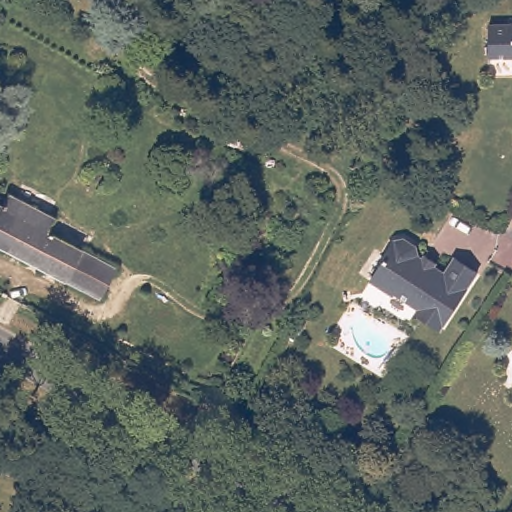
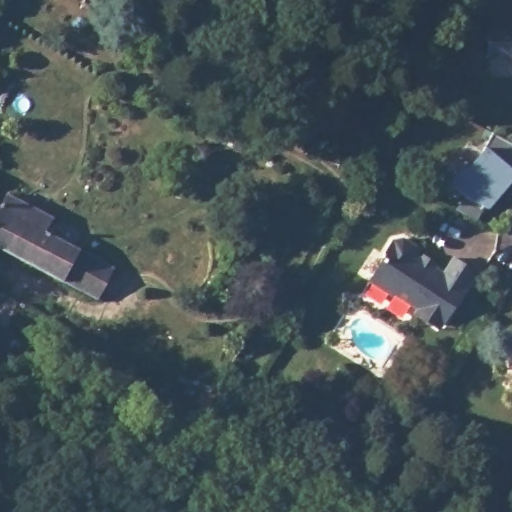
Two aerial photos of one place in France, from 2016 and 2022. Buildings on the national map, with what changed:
unchanged [(488,23),(512,23),(512,56),(488,56),(488,23)]
unchanged [(177,114),(205,129),(200,140),(172,125),(177,114)]
new [(471,199),(454,187),(466,170),(471,172),(484,153),(494,134),(512,144),(512,183),(492,212),(489,210),(485,216),(481,223),(462,213),(468,205),(471,199)]
unchanged [(0,207),(8,194),(53,218),(46,232),(114,269),(98,301),(0,249),(0,207)]
unchanged [(376,277),(392,253),(391,248),(400,234),(409,232),(422,241),(424,253),(450,269),(460,254),(483,269),(445,326),(419,310),(423,305),(399,289),(397,291),(376,277)]

